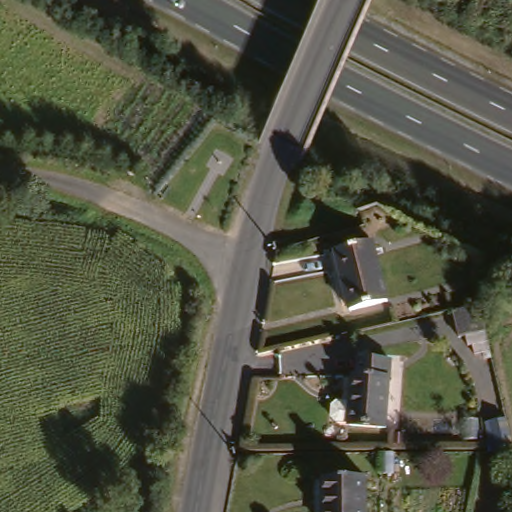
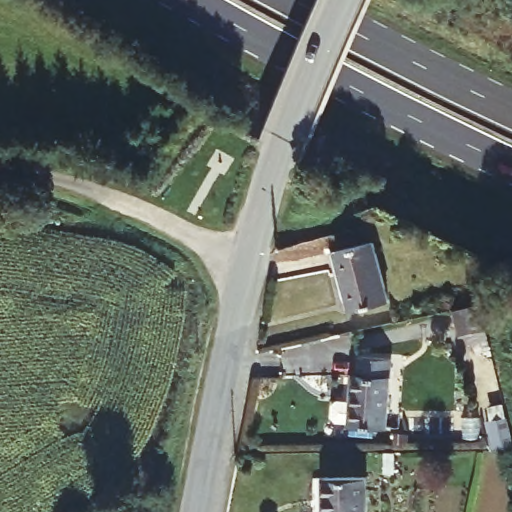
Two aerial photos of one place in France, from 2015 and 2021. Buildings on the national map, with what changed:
unchanged [(383,295),(347,303),(336,254),(372,246),(383,295)]
unchanged [(454,339),(449,314),(477,307),(478,309),(484,333),(480,334),(454,339)]
unchanged [(390,418),(353,419),(353,417),(339,418),(334,414),(334,402),(339,397),(353,397),(352,381),(357,381),(356,357),(388,356),(390,418)]
unchanged [(507,419),(512,437),(512,449),(499,452),(495,453),(487,424),(492,423),(507,419)]
unchanged [(322,512),(321,479),(364,478),(364,512),(322,512)]

